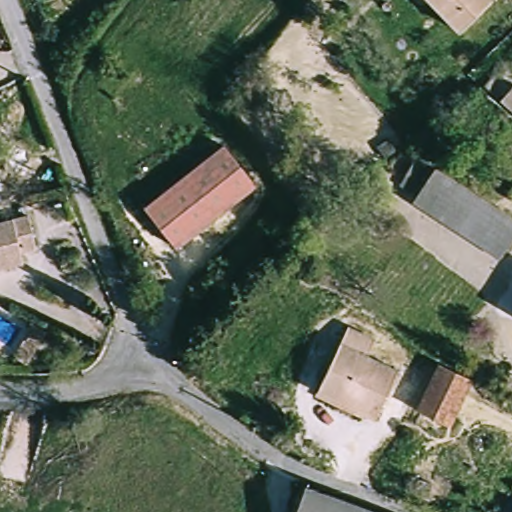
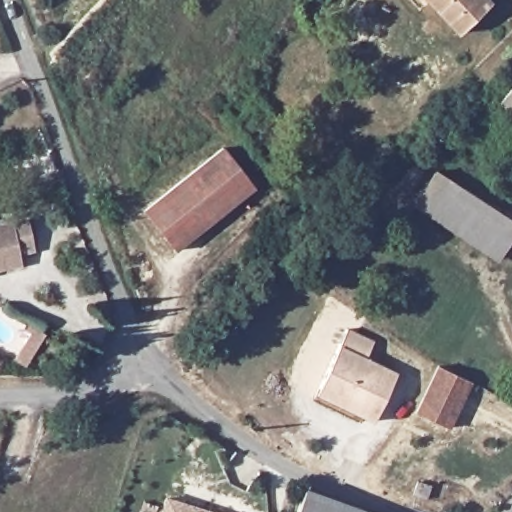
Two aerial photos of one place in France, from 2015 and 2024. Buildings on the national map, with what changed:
unchanged [(490,0),(462,33),(425,0),(490,0)]
unchanged [(497,130),(510,112),(512,114),(512,140),(497,130)]
unchanged [(222,145),(257,185),(182,252),(147,212),(222,145)]
new [(0,196),(0,164),(4,196),(0,196)]
unchanged [(497,256),(413,204),(435,168),(492,202),(512,214),(512,231),(497,256)]
unchanged [(38,247),(24,250),(24,263),(0,264),(0,221),(34,218),(38,247)]
unchanged [(28,332),(24,328),(28,323),(42,336),(19,365),(8,356),(28,332)]
unchanged [(317,400),(323,387),(346,329),(375,341),(368,357),(398,370),(378,417),(362,410),(357,418),(317,400)]
unchanged [(444,367),(470,384),(449,417),(422,399),(444,367)]
unchanged [(306,490),(374,512),(297,512),(306,490)]
new [(165,497),(218,512),(160,512),(165,497)]

